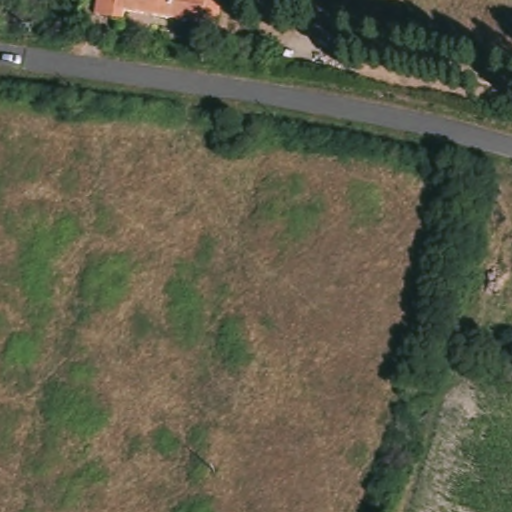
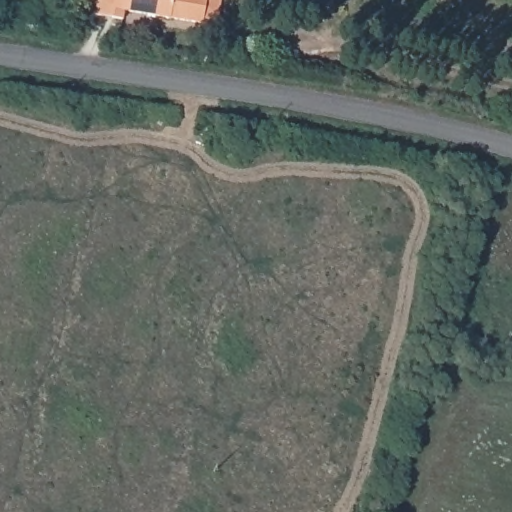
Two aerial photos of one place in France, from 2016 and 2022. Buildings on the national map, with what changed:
unchanged [(216,29),(128,12),(126,21),(97,15),(100,0),(221,0),(216,29)]

